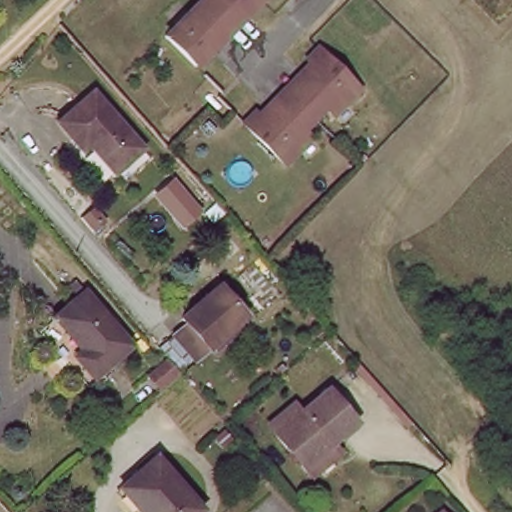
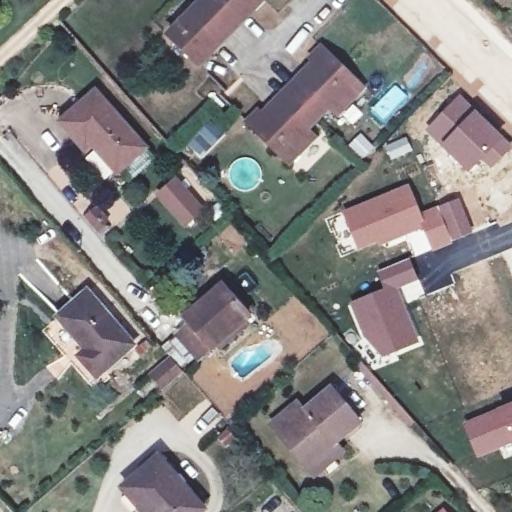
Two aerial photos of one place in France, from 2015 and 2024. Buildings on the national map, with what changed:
unchanged [(213,59),(205,66),(173,35),(208,0),(268,0),(248,21),(242,15),(219,37),(227,44),(213,59)]
unchanged [(289,103),(309,81),(300,72),(329,42),(372,87),(358,100),(354,95),(305,145),(310,150),(296,165),(253,120),(279,94),(289,103)]
unchanged [(95,142),(90,146),(67,119),(98,91),(148,149),(120,171),(95,142)]
new [(512,145),(512,147),(490,170),(480,160),(468,172),(425,130),(459,94),(512,145)]
new [(184,176),(210,206),(195,220),(169,190),(184,176)]
new [(409,183),(420,211),(425,229),(406,236),(358,250),(341,210),(409,183)]
new [(425,229),(420,211),(460,197),(474,233),(432,251),(415,257),(406,236),(425,229)]
new [(383,288),(376,271),(410,258),(426,295),(407,303),(422,343),(380,360),(361,336),(347,303),(383,288)]
unchanged [(199,323),(193,315),(213,298),(230,285),(257,316),(240,330),(207,358),(186,333),(199,323)]
unchanged [(93,292),(140,343),(102,378),(83,357),(92,348),(65,318),(93,292)]
unchanged [(308,467),(298,456),(274,428),(305,403),(330,382),(358,415),(333,436),(329,440),(333,446),(308,467)]
new [(512,446),(476,460),(461,422),(512,402),(512,446)]
unchanged [(199,505),(191,512),(150,512),(123,482),(155,455),(199,505)]

